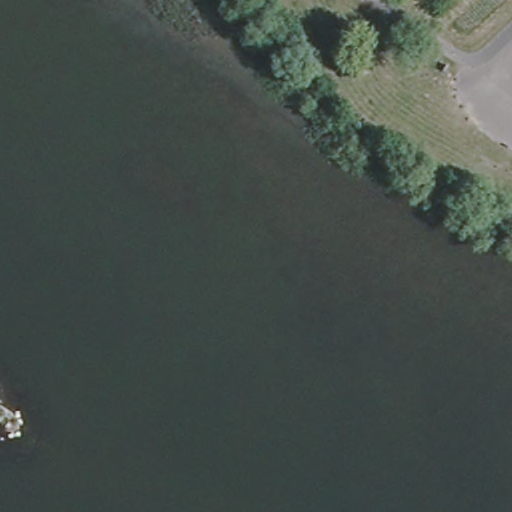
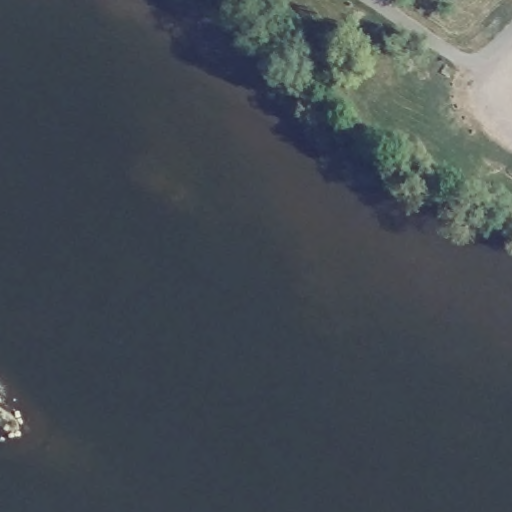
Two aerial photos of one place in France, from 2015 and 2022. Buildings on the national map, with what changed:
[]

